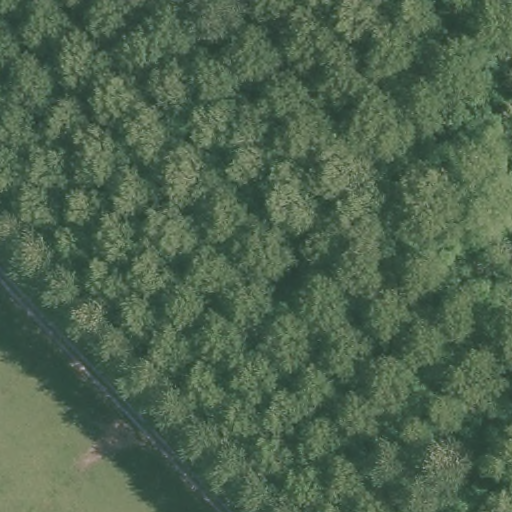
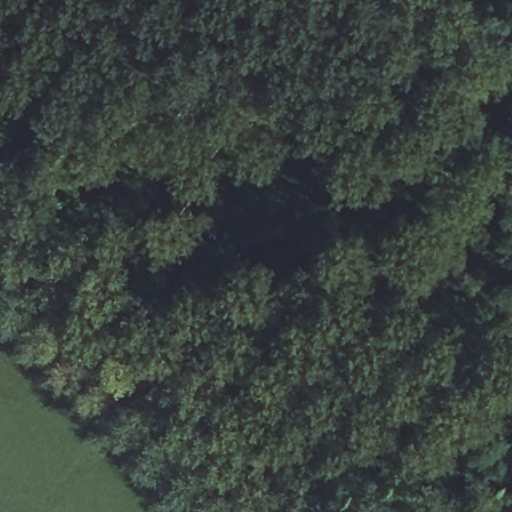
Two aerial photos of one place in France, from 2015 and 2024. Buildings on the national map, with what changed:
[]

